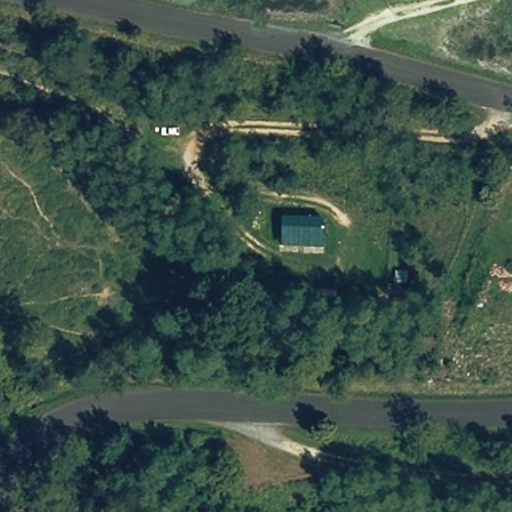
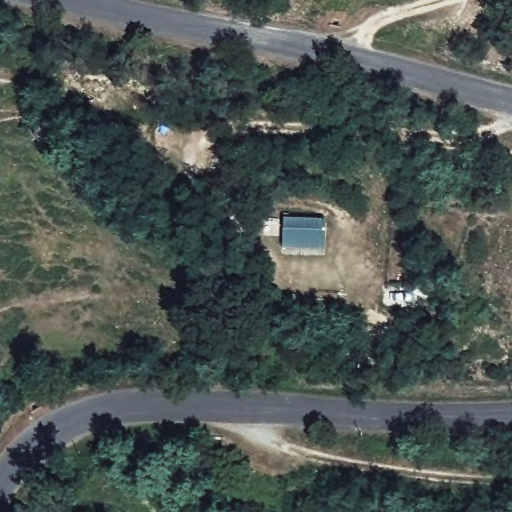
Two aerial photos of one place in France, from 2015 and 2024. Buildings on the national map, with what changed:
unchanged [(326,218),(327,242),(309,242),(309,251),(282,251),(284,218),(326,218)]

